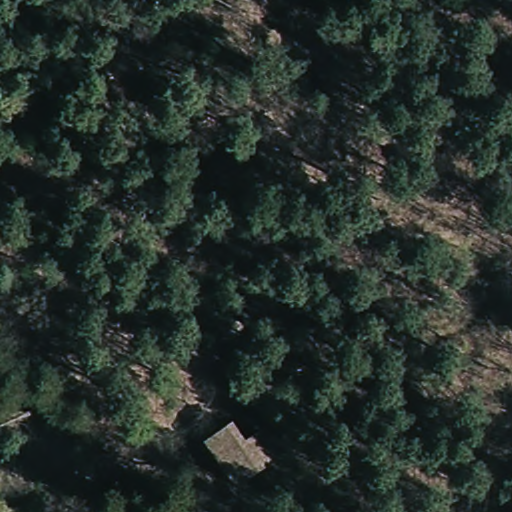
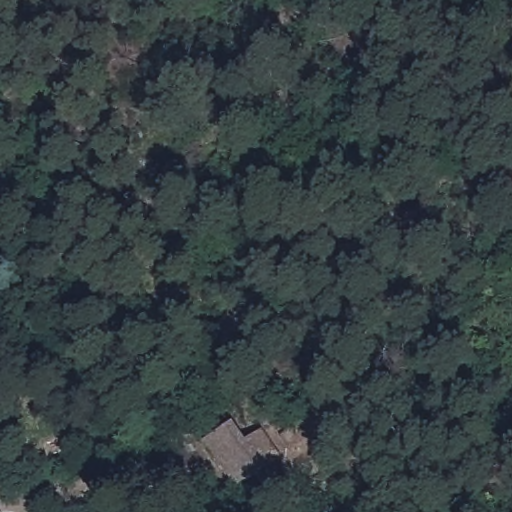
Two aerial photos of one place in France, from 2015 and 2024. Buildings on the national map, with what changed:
unchanged [(246,446),(263,433),(281,458),(243,486),(209,441),(231,424),(246,446)]

